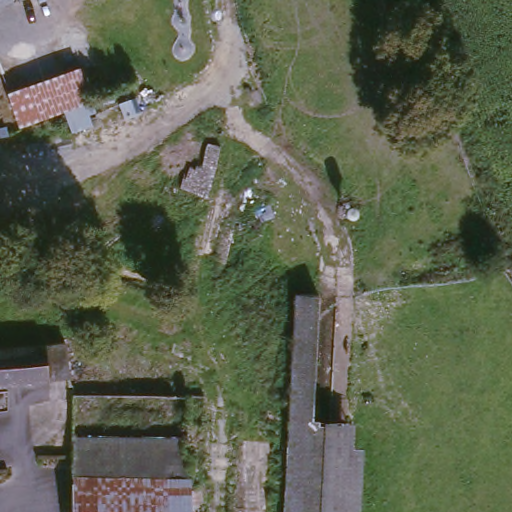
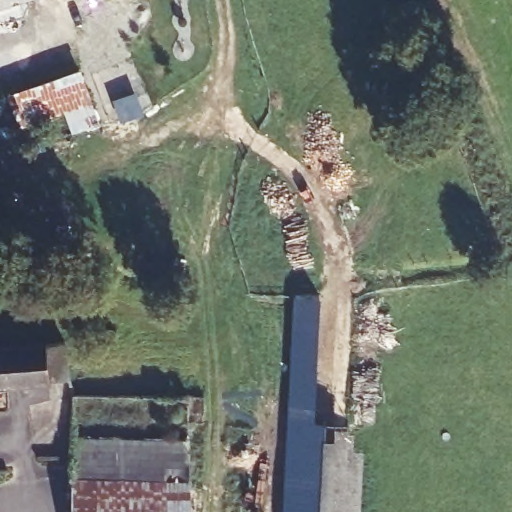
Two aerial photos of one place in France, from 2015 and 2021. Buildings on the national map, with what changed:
unchanged [(28,0),(0,9),(0,0),(28,0)]
unchanged [(87,63),(95,104),(60,116),(63,129),(26,140),(11,90),(87,63)]
unchanged [(294,296),(342,296),(353,296),(352,512),(292,512),(294,296)]
unchanged [(369,296),(366,512),(352,512),(353,296),(369,296)]
unchanged [(9,351),(55,349),(77,348),(77,383),(56,383),(0,383),(0,352),(9,351)]
unchanged [(189,460),(74,463),(73,433),(186,431),(189,460)]
unchanged [(190,490),(194,490),(199,490),(200,512),(78,512),(74,463),(189,460),(190,490)]

